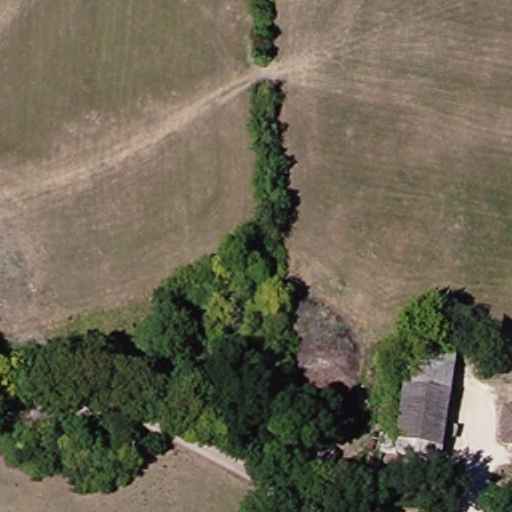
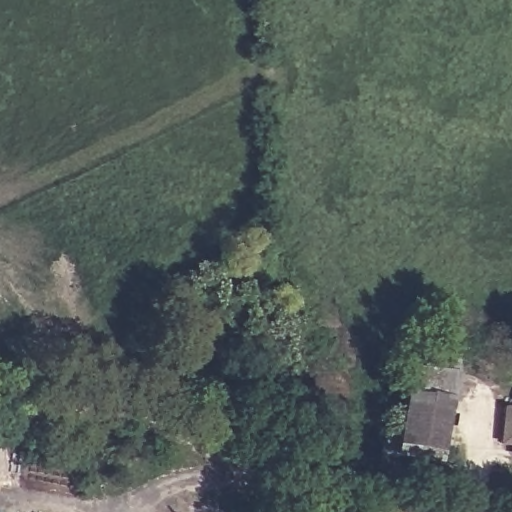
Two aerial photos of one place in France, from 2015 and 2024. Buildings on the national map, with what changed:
unchanged [(449,400),(404,394),(407,371),(452,376),(449,400)]
unchanged [(442,452),(397,446),(404,394),(449,400),(442,452)]

